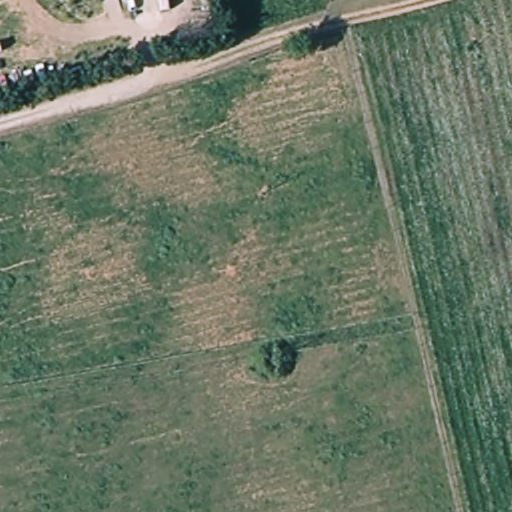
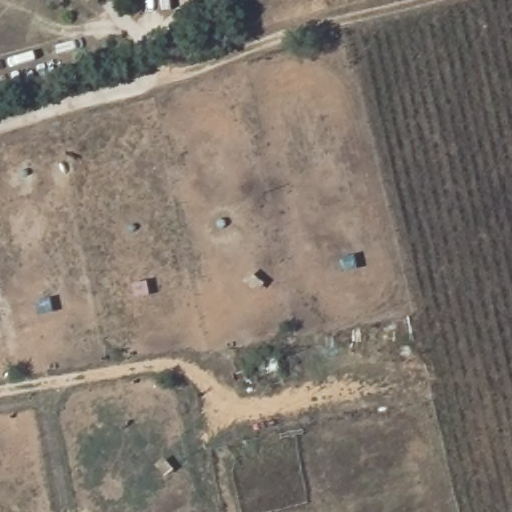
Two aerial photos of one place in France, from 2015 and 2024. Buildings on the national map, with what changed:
unchanged [(280,370),(265,374),(260,354),(273,350),(280,370)]

